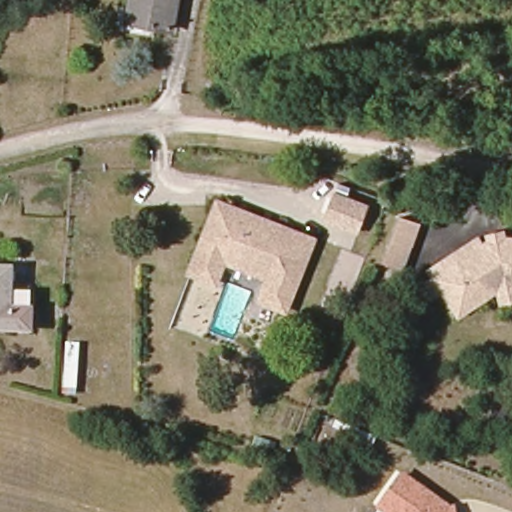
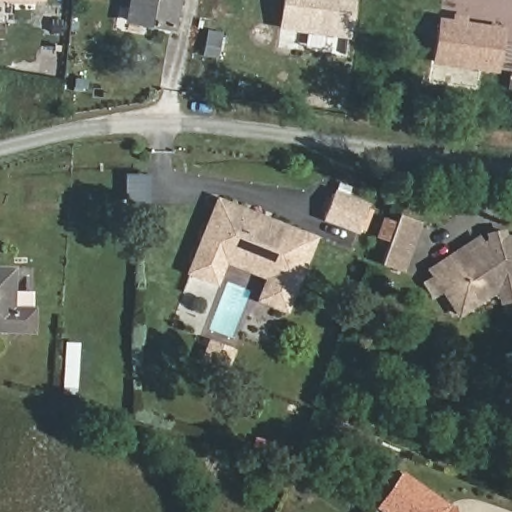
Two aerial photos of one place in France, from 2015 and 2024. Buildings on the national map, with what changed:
new [(0,0),(44,0),(44,2),(0,2),(0,0)]
unchanged [(131,22),(134,0),(181,0),(177,29),(131,22)]
new [(280,0),(347,0),(343,35),(277,27),(280,0)]
new [(437,21),(499,30),(493,70),(431,61),(437,21)]
unchanged [(356,228),(322,214),(331,191),(366,205),(356,228)]
unchanged [(257,293),(263,278),(267,269),(220,250),(213,268),(210,275),(201,271),(202,265),(190,260),(213,202),(216,195),(239,204),(238,207),(284,226),(285,222),(308,232),(286,287),(280,302),(257,293)]
unchanged [(402,277),(378,269),(397,215),(421,223),(402,277)]
unchanged [(498,286),(457,314),(427,270),(474,237),(480,246),(487,241),(509,239),(512,239),(512,284),(498,286)]
unchanged [(11,295),(32,297),(27,337),(0,334),(0,272),(13,273),(11,295)]
unchanged [(240,381),(207,368),(215,349),(247,362),(240,381)]
unchanged [(455,505),(457,512),(380,512),(374,507),(399,472),(446,506),(455,505)]

